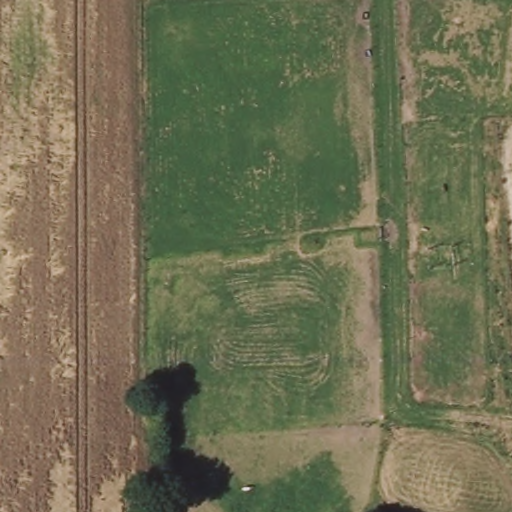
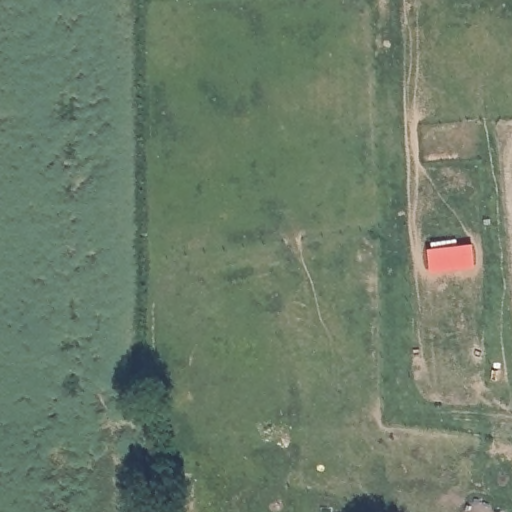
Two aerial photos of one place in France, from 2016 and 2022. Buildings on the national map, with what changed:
new [(428,271),(427,247),(472,242),(473,267),(428,271)]

